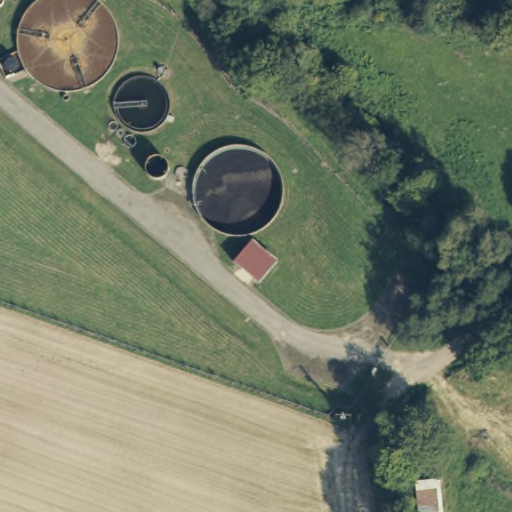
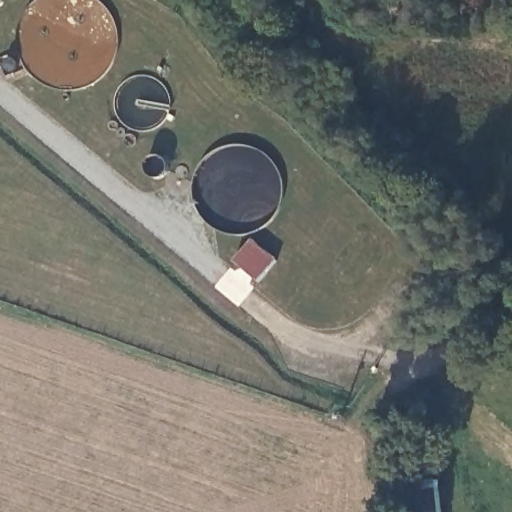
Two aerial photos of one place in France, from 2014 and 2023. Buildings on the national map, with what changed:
unchanged [(255,280),(228,259),(246,237),(272,259),(255,280)]
unchanged [(442,512),(419,512),(417,482),(441,481),(442,512)]

